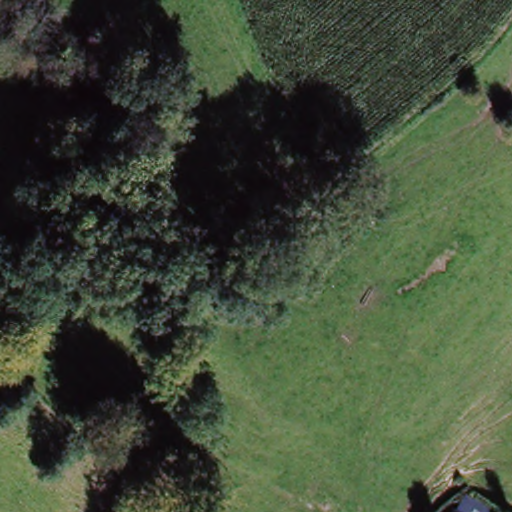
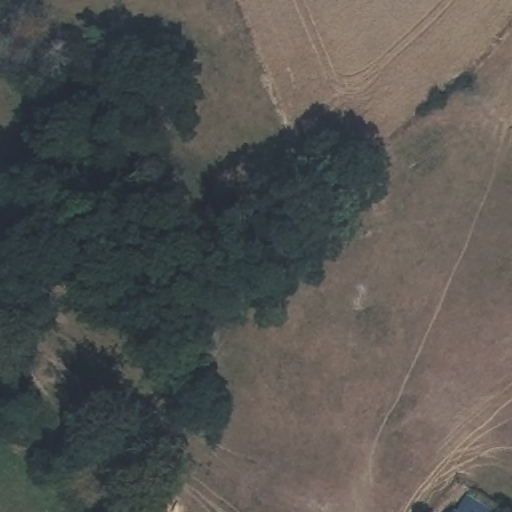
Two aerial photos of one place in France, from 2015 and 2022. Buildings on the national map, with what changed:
unchanged [(494,509),(499,512),(492,512),(494,509)]
unchanged [(459,512),(455,512),(456,510),(459,512)]

